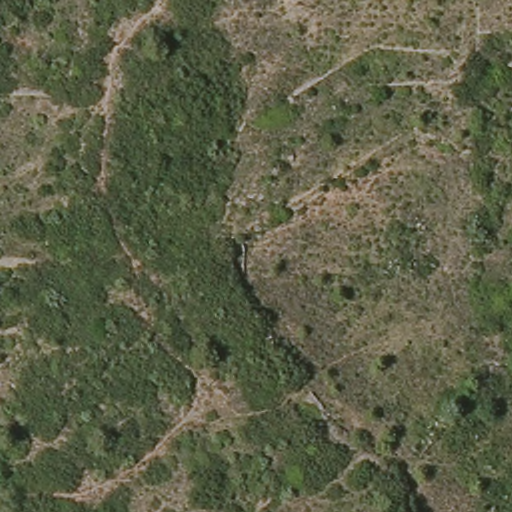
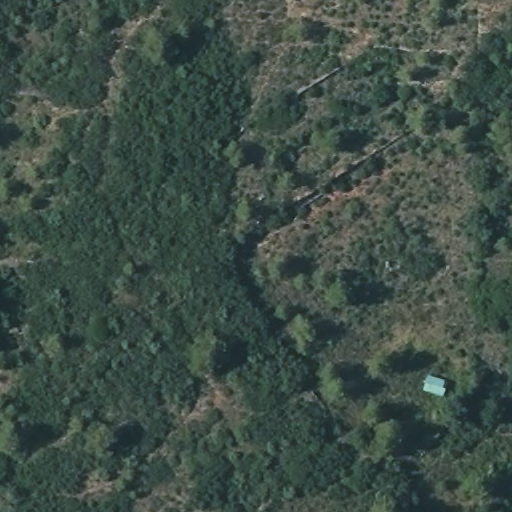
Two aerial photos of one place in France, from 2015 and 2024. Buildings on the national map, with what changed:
[]

